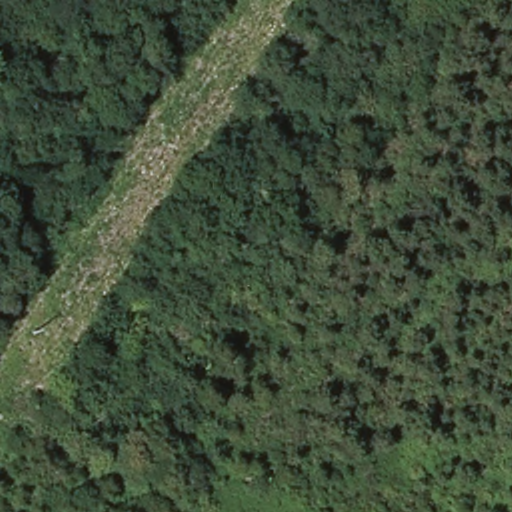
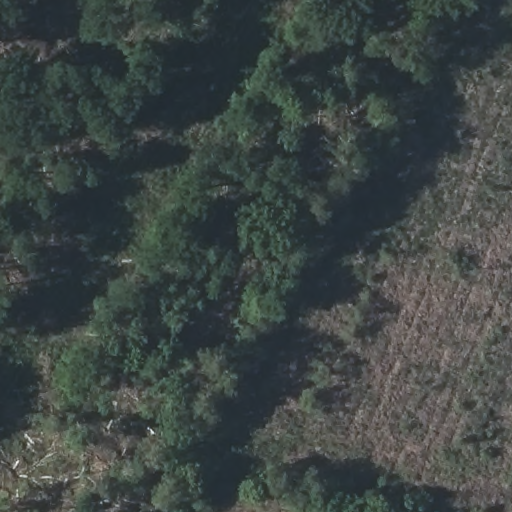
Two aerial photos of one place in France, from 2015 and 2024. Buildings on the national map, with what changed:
[]

